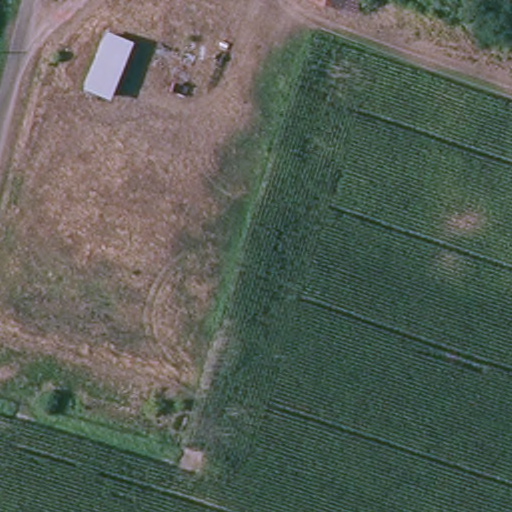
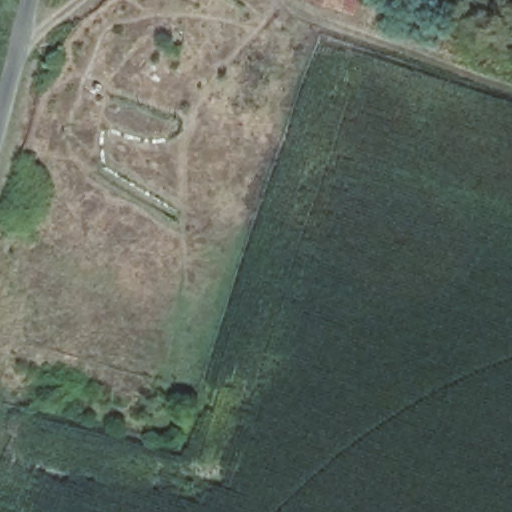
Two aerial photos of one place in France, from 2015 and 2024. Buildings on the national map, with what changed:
unchanged [(322,0),(348,0),(346,7),(322,0)]
demolished [(87,89),(109,31),(137,41),(115,95),(87,89)]

